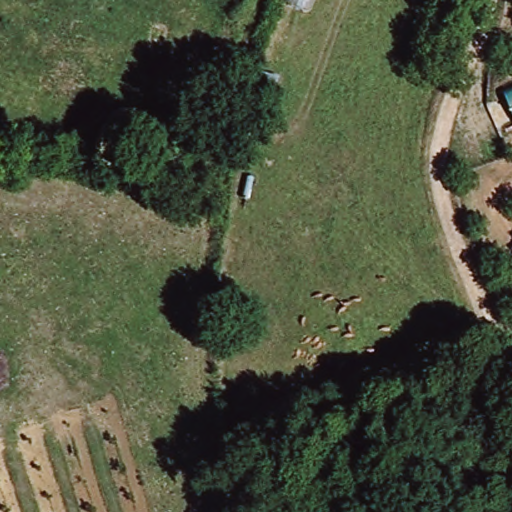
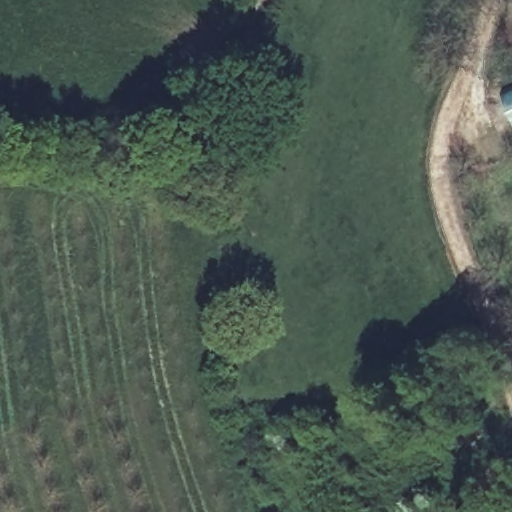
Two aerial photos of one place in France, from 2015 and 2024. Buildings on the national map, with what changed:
unchanged [(512,96),(512,127),(500,101),(512,96)]

